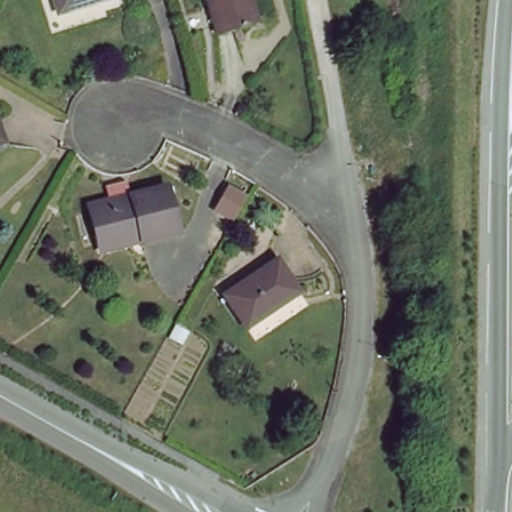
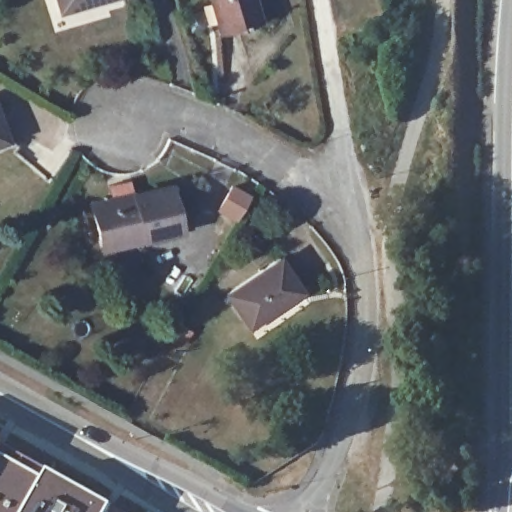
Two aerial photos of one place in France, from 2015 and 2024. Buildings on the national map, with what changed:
unchanged [(62,8),(59,0),(89,0),(62,8)]
unchanged [(261,23),(218,36),(207,0),(254,0),(261,23)]
unchanged [(0,140),(0,121),(5,138),(0,140)]
unchanged [(100,235),(92,200),(169,182),(180,228),(146,237),(103,247),(100,235)]
unchanged [(230,187),(248,197),(234,219),(218,209),(230,187)]
unchanged [(249,328),(226,292),(279,257),(303,292),(249,328)]
new [(0,453),(0,444),(4,446),(0,453)]
new [(51,473),(114,509),(112,512),(0,512),(0,457),(46,482),(51,473)]

